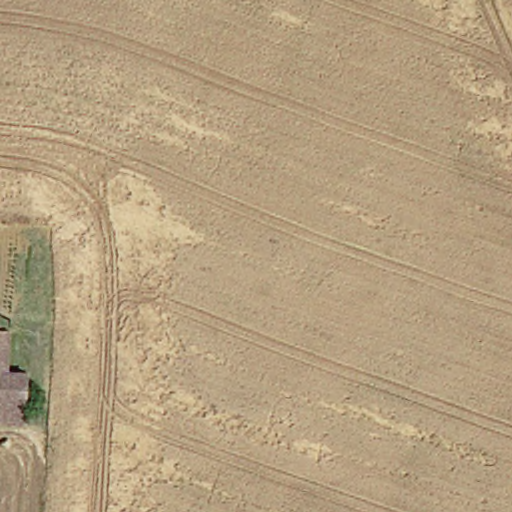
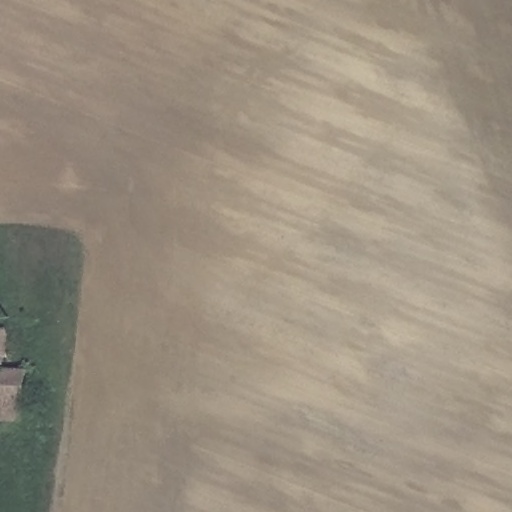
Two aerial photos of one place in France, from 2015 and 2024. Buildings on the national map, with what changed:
unchanged [(0,330),(2,330),(0,347),(0,330)]
unchanged [(1,424),(0,424),(0,371),(9,372),(1,424)]

